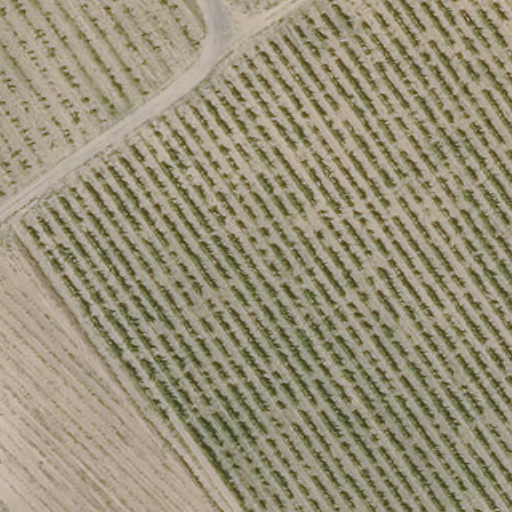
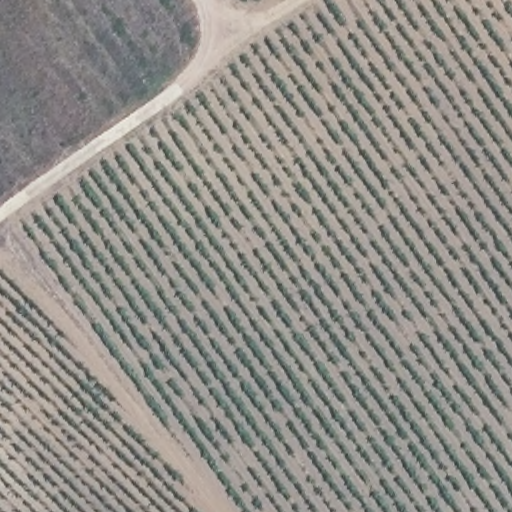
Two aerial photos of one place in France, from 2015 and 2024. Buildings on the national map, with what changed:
[]

